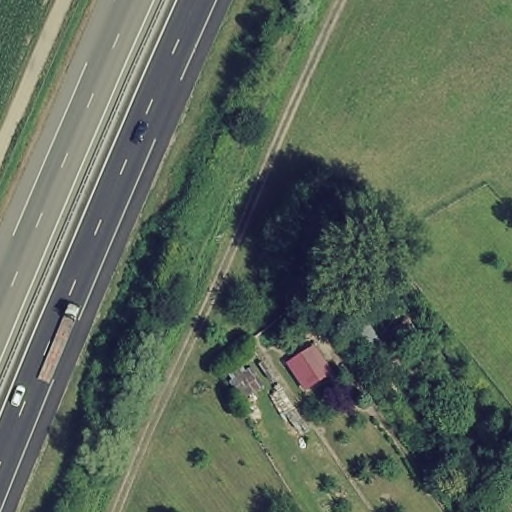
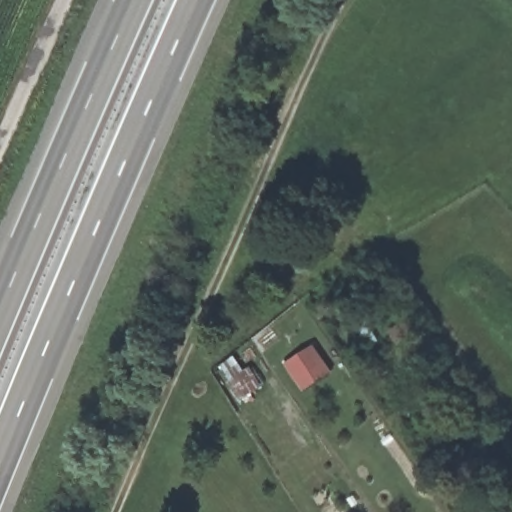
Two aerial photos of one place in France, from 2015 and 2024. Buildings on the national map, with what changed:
unchanged [(301,387),(286,360),(311,341),(330,370),(301,387)]

